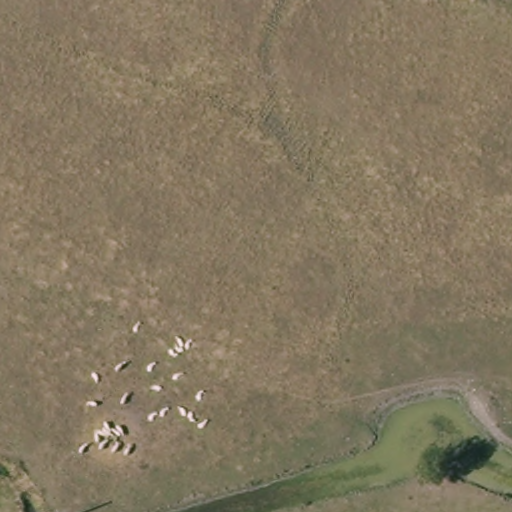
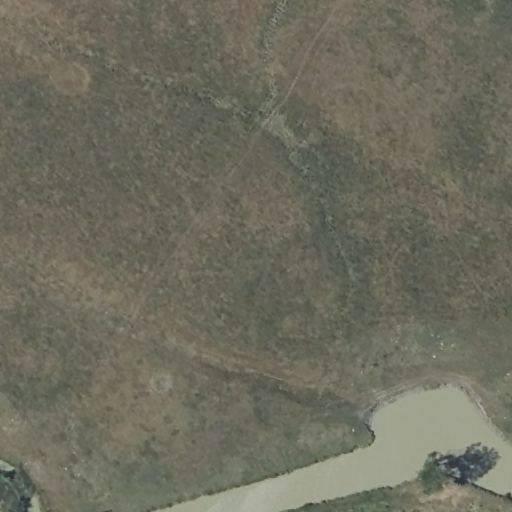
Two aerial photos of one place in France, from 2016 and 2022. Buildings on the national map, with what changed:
[]

